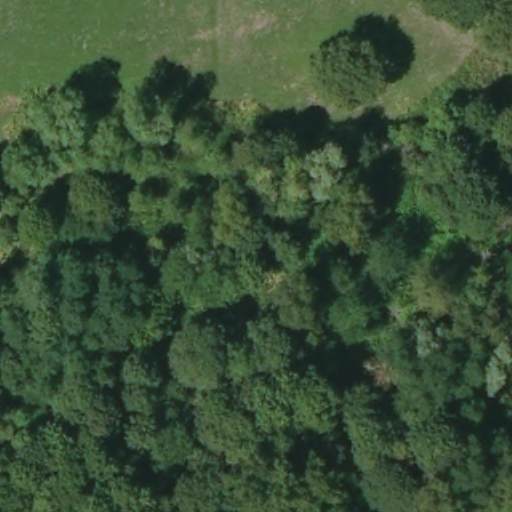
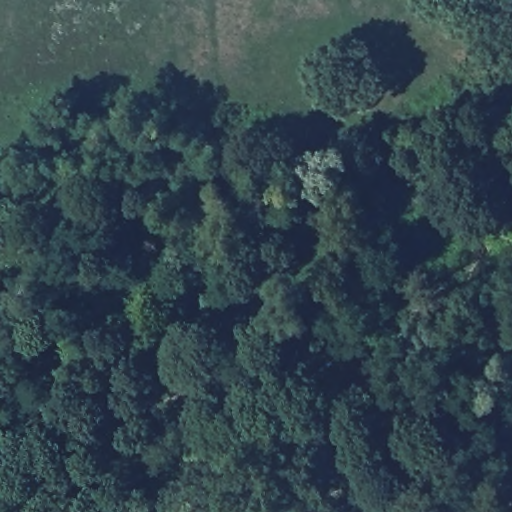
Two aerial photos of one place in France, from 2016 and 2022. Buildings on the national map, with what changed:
[]

